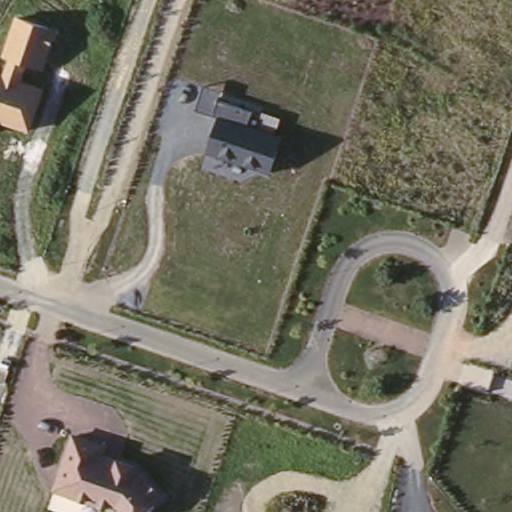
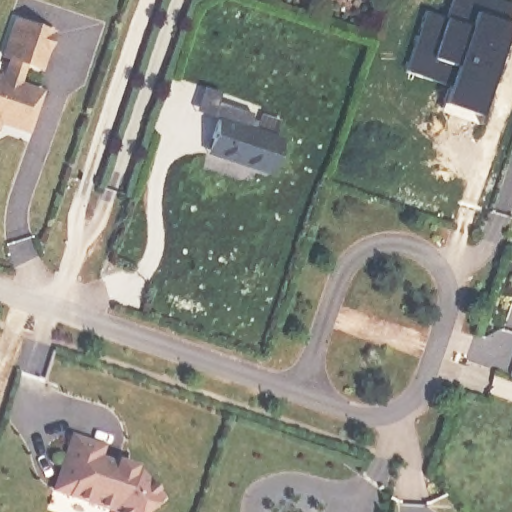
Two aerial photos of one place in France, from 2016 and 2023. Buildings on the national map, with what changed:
new [(445,86),(428,80),(401,71),(423,10),(443,17),(450,0),(497,0),(512,6),(505,24),(508,25),(472,124),(471,124),(436,111),(438,107),(445,86)]
unchanged [(43,71),(27,67),(22,81),(44,87),(30,132),(0,124),(0,125),(0,74),(2,75),(8,57),(2,55),(15,15),(57,29),(43,71)]
unchanged [(222,91),(218,104),(254,113),(253,117),(258,119),(260,112),(281,119),(276,133),(283,135),(272,172),(206,154),(217,117),(195,110),(204,85),(222,91)]
unchanged [(106,455),(142,467),(165,495),(147,512),(114,512),(112,510),(53,490),(73,432),(110,445),(106,455)]

